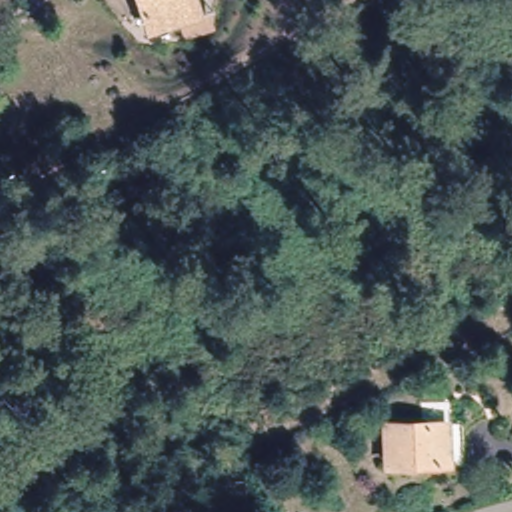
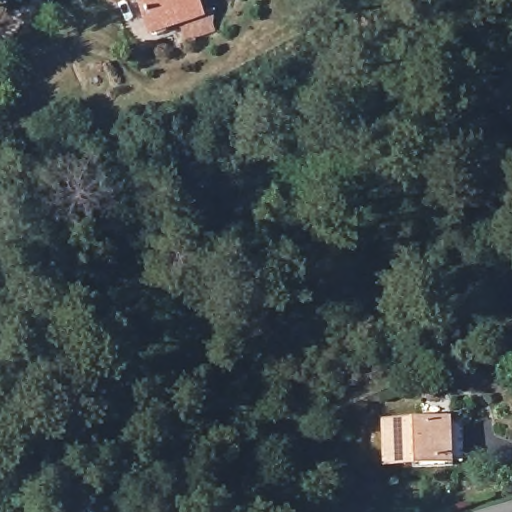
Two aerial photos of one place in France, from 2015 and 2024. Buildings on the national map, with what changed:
unchanged [(190,25),(180,29),(175,16),(149,25),(140,0),(191,0),(194,10),(208,5),(207,20),(190,25)]
unchanged [(378,425),(435,425),(453,425),(455,461),(436,461),(378,462),(378,425)]

